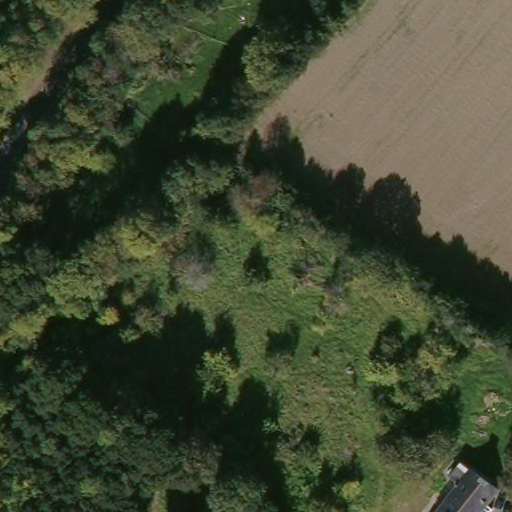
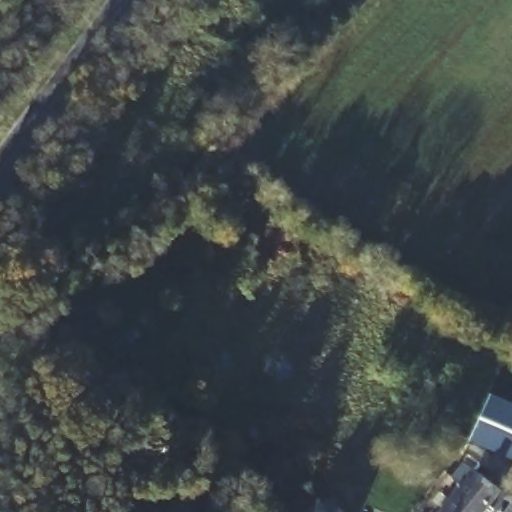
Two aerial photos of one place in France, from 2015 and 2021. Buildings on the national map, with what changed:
new [(512,460),(468,441),(490,393),(512,404),(512,460)]
unchanged [(460,476),(469,464),(477,472),(491,484),(501,492),(487,507),(492,512),(440,512),(468,482),(460,476)]

